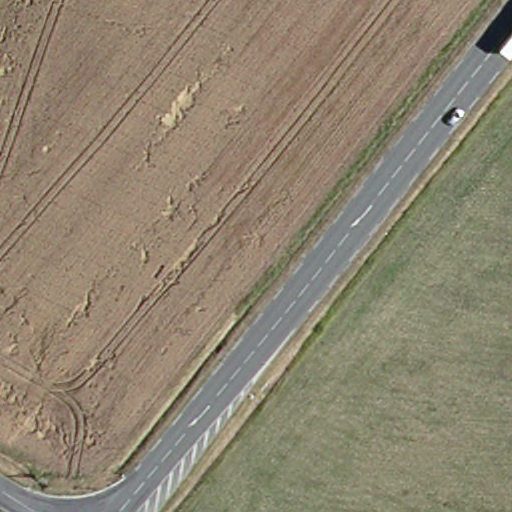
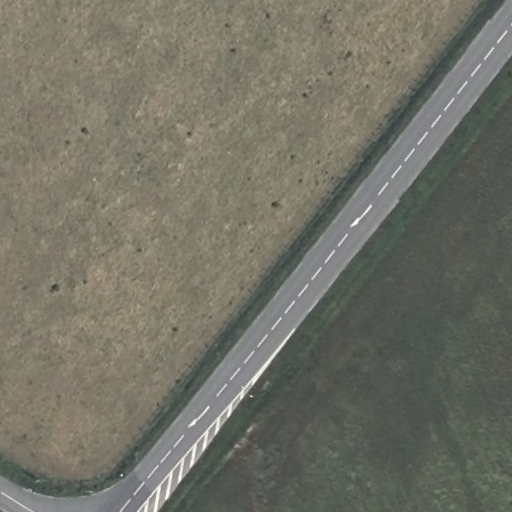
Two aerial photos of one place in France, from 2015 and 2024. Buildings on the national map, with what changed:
[]

